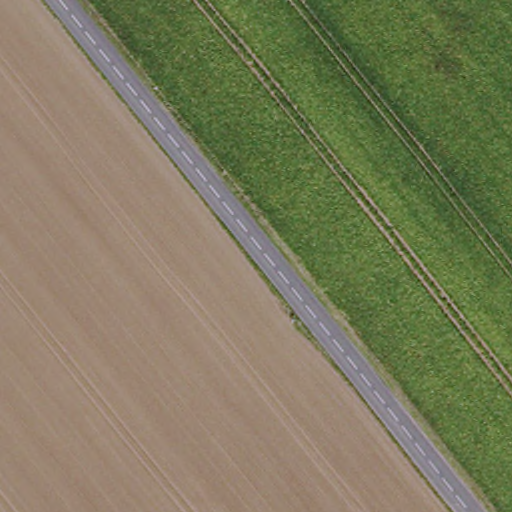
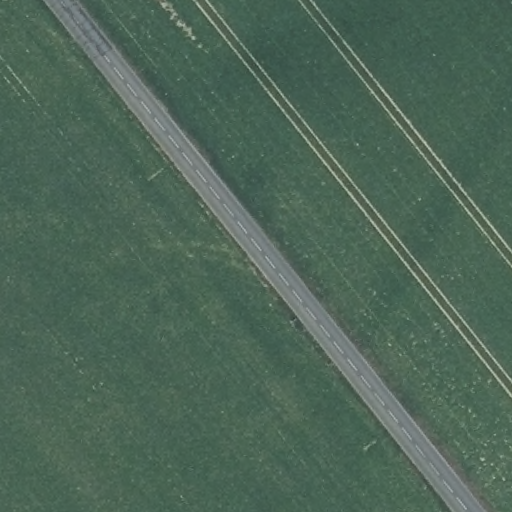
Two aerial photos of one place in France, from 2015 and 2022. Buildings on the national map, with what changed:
[]

